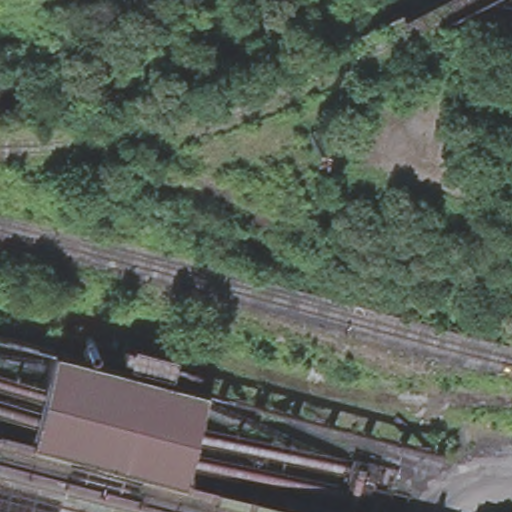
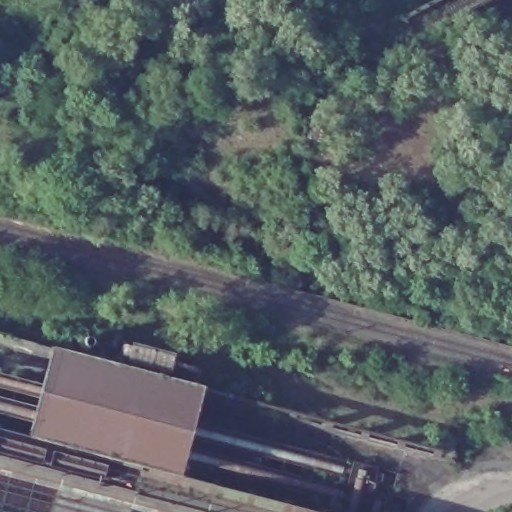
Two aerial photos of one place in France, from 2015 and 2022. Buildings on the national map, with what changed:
unchanged [(53,347),(119,363),(125,345),(173,357),(170,377),(205,387),(180,479),(29,436),(53,347)]

